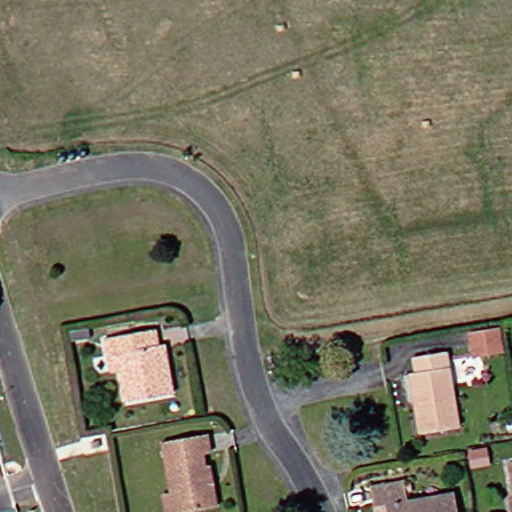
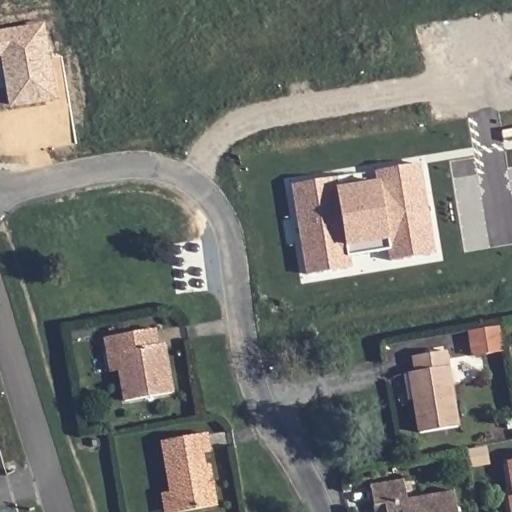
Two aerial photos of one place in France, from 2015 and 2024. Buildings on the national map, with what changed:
new [(9,109),(0,58),(0,30),(45,23),(58,100),(9,109)]
new [(437,253),(388,261),(387,250),(352,256),(353,268),(307,276),(292,185),(352,175),(353,184),(376,180),(374,172),(422,163),(437,253)]
unchanged [(90,336),(76,339),(74,329),(88,327),(90,336)]
unchanged [(500,353),(469,358),(465,333),(495,328),(500,353)]
unchanged [(135,401),(129,370),(120,371),(114,338),(165,329),(167,344),(173,343),(179,373),(182,393),(135,401)]
unchanged [(454,429),(416,435),(410,401),(404,402),(400,376),(411,374),(408,358),(441,352),(454,429)]
unchanged [(504,430),(502,422),(512,420),(512,429),(504,430)]
unchanged [(180,493),(171,442),(217,434),(220,451),(213,452),(215,465),(220,464),(227,505),(186,512),(176,512),(173,494),(180,493)]
unchanged [(385,512),(381,485),(413,480),(413,483),(420,481),(421,491),(415,492),(416,498),(462,490),(466,512),(385,512)]

